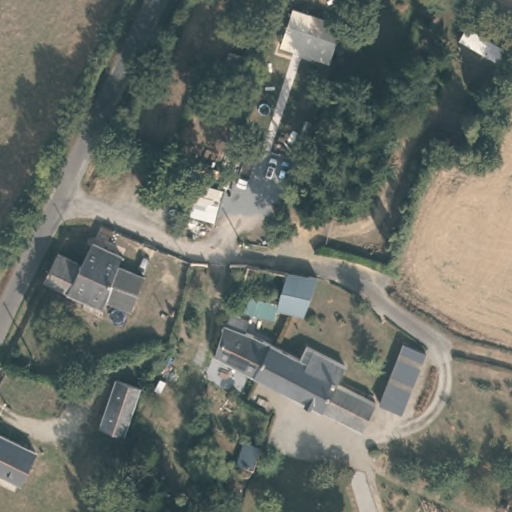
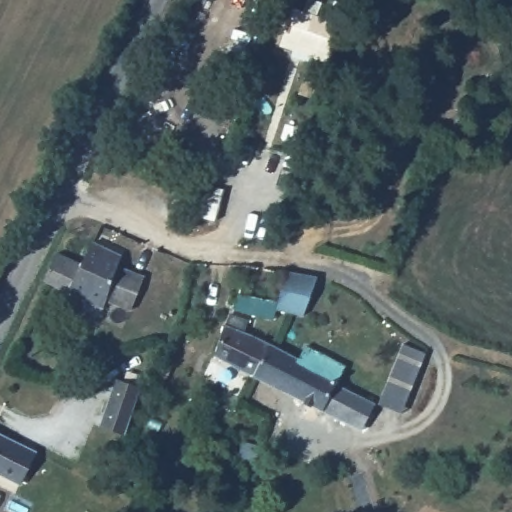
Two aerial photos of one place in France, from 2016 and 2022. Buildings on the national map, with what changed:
unchanged [(228,54),(251,62),(242,86),(220,77),(228,54)]
unchanged [(104,309),(69,294),(45,284),(59,256),(83,266),(94,244),(123,256),(119,267),(106,303),(104,309)]
unchanged [(144,277),(131,312),(106,303),(119,267),(144,277)]
unchanged [(234,310),(240,293),(278,305),(285,274),(311,280),(300,311),(286,306),(280,305),(276,320),(234,310)]
unchanged [(212,357),(226,326),(272,347),(256,378),(212,357)]
unchanged [(272,347),(301,360),(306,349),(346,366),(337,386),(324,412),(256,378),(272,347)]
unchanged [(394,377),(404,349),(423,356),(413,384),(394,377)]
unchanged [(101,427),(117,382),(141,391),(126,437),(101,427)]
unchanged [(377,405),(363,432),(324,412),(337,386),(377,405)]
unchanged [(21,486),(0,475),(0,436),(38,454),(21,486)]
unchanged [(239,475),(242,466),(237,464),(244,444),(262,448),(252,480),(239,475)]

